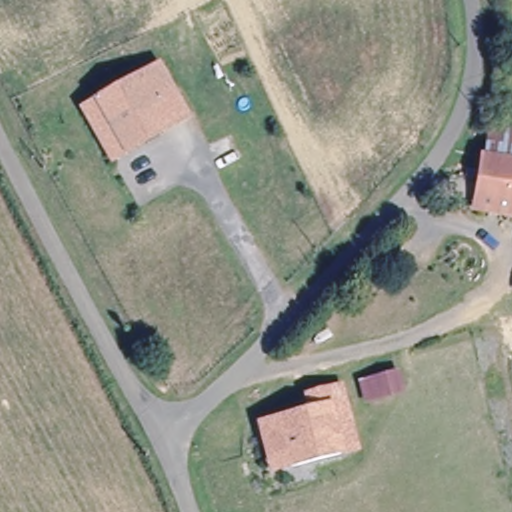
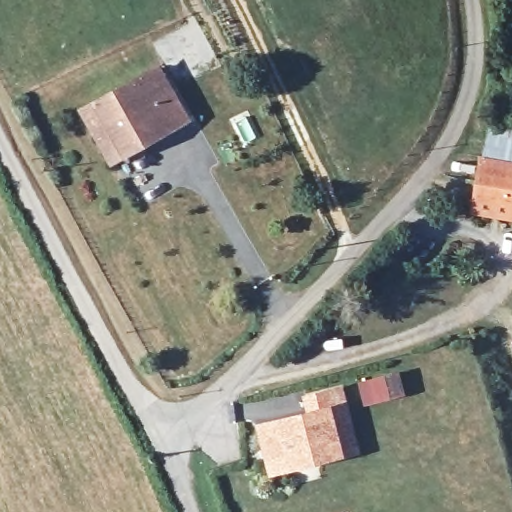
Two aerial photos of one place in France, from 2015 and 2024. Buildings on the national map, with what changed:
unchanged [(90,109),(101,102),(155,70),(162,67),(179,94),(173,98),(156,108),(163,121),(168,129),(152,138),(129,152),(119,158),(90,109)]
unchanged [(512,126),(512,161),(483,158),(484,145),(486,124),(512,126)]
unchanged [(512,161),(512,216),(479,214),(483,158),(512,161)]
unchanged [(403,376),(407,393),(371,402),(366,385),(403,376)]
unchanged [(315,398),(347,390),(364,452),(348,456),(336,411),(319,415),(315,398)]
unchanged [(319,415),(336,411),(348,456),(300,469),(294,448),(275,454),(269,427),(319,415)]

